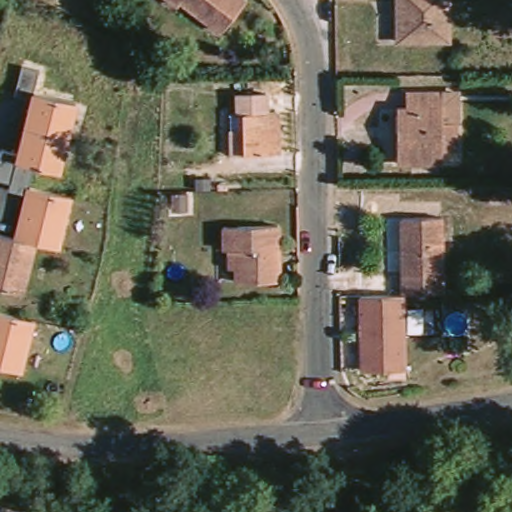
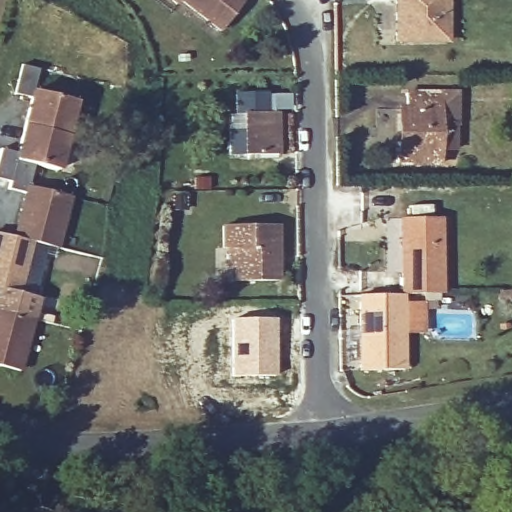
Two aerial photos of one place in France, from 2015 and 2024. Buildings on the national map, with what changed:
unchanged [(214,28),(175,0),(234,0),(214,28)]
unchanged [(395,44),(394,16),(402,15),(401,5),(394,4),(394,0),(446,0),(445,24),(433,24),(434,44),(395,44)]
unchanged [(17,121),(21,102),(5,98),(12,64),(30,68),(24,90),(65,99),(60,131),(17,121)]
unchanged [(388,110),(397,110),(399,91),(435,91),(435,161),(387,161),(387,133),(388,110)]
unchanged [(276,157),(245,158),(244,115),(276,114),(276,157)]
unchanged [(0,183),(0,153),(9,155),(17,121),(60,131),(50,171),(26,166),(5,161),(0,183)]
unchanged [(0,189),(0,183),(5,161),(26,166),(21,185),(65,195),(54,245),(32,239),(10,235),(20,194),(0,189)]
unchanged [(396,217),(433,216),(434,290),(397,292),(396,217)]
unchanged [(232,252),(217,252),(217,231),(274,229),(276,281),(234,282),(232,252)]
unchanged [(0,288),(0,232),(10,235),(32,239),(20,293),(0,288)]
unchanged [(353,293),(397,292),(399,366),(356,365),(353,293)]
unchanged [(0,363),(0,309),(24,315),(12,366),(0,363)]
new [(276,318),(277,375),(231,377),(230,318),(276,318)]

